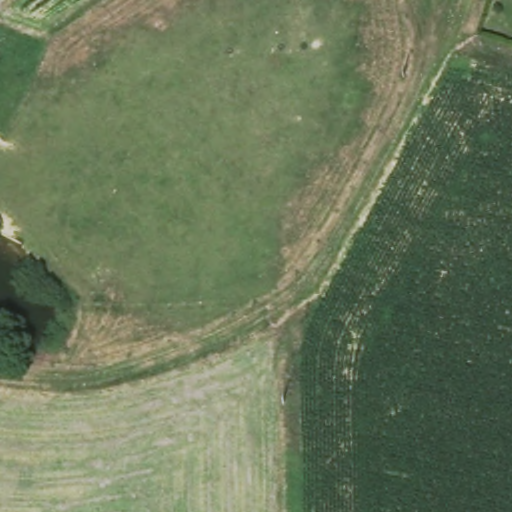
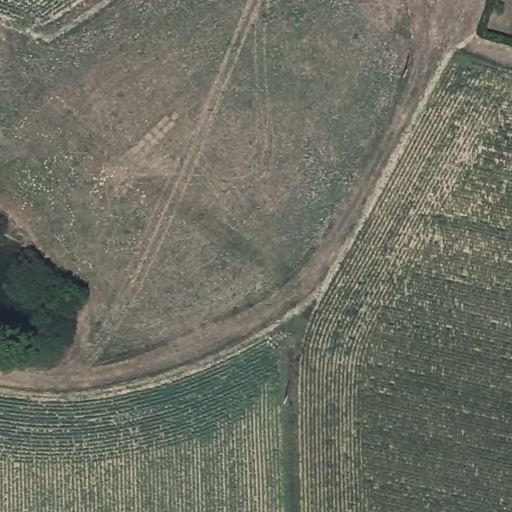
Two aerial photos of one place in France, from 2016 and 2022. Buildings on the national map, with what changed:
[]

